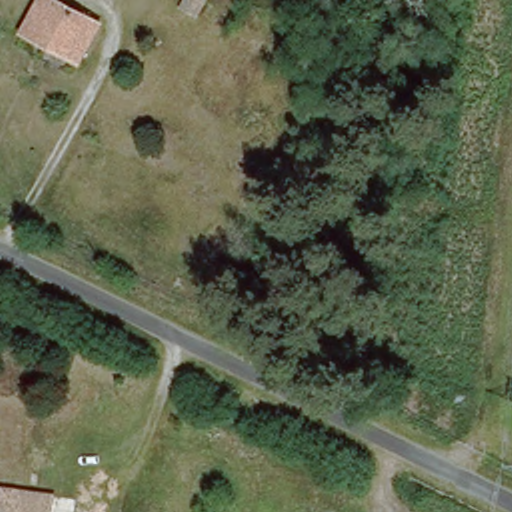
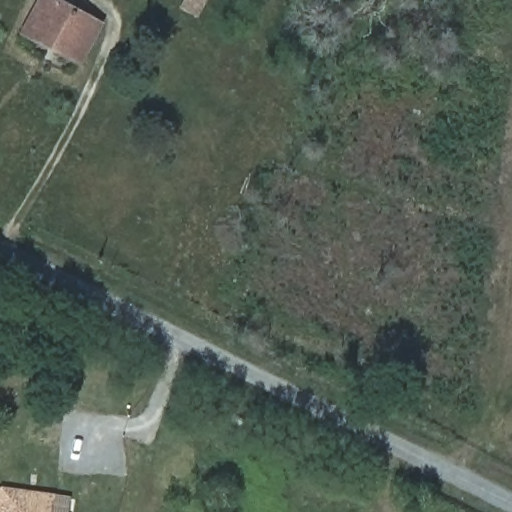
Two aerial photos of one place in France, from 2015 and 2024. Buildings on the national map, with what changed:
unchanged [(83,65),(23,33),(41,0),(49,0),(100,27),(83,65)]
unchanged [(184,5),(187,0),(203,0),(197,13),(184,5)]
unchanged [(47,512),(0,512),(0,507),(3,488),(49,495),(47,512)]

